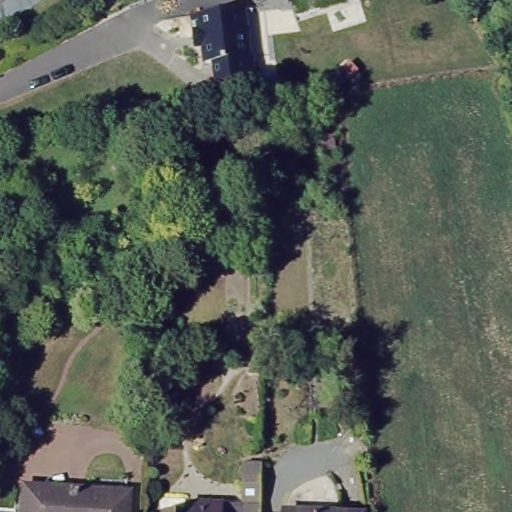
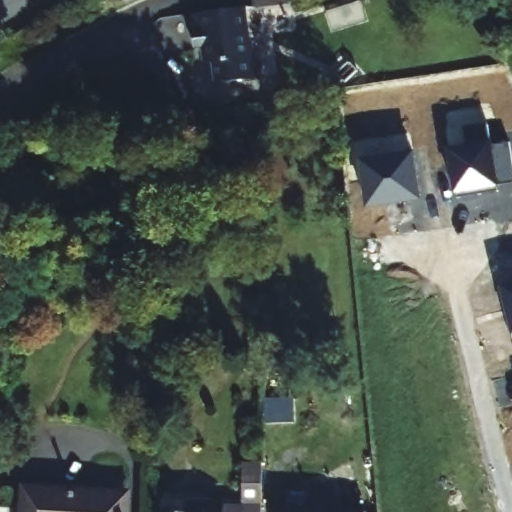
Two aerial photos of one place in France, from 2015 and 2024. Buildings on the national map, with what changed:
unchanged [(248,57),(205,63),(199,13),(242,7),(248,57)]
new [(251,77),(217,81),(215,61),(248,57),(251,77)]
new [(468,143),(467,126),(486,122),(490,146),(506,143),(512,165),(512,181),(485,185),(487,189),(455,195),(447,147),(468,143)]
new [(421,200),(367,207),(358,156),(413,150),(421,200)]
unchanged [(10,189),(27,190),(27,202),(8,201),(10,189)]
unchanged [(250,351),(265,351),(265,374),(250,374),(250,351)]
unchanged [(237,505),(239,462),(257,463),(257,504),(257,512),(183,512),(183,503),(237,505)]
unchanged [(127,488),(125,512),(25,512),(27,482),(127,488)]
unchanged [(363,509),(363,512),(284,512),(284,505),(363,509)]
unchanged [(183,512),(161,512),(161,511),(183,512)]

